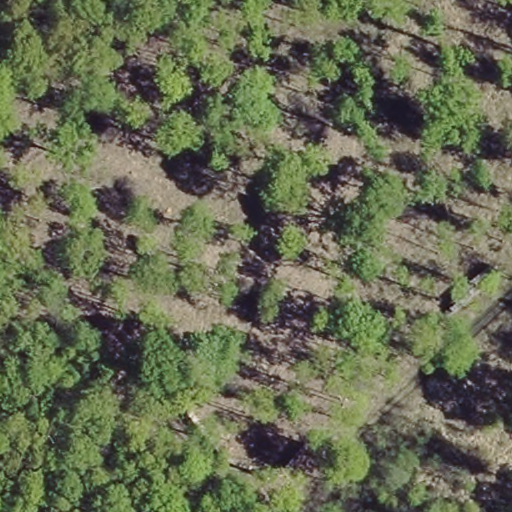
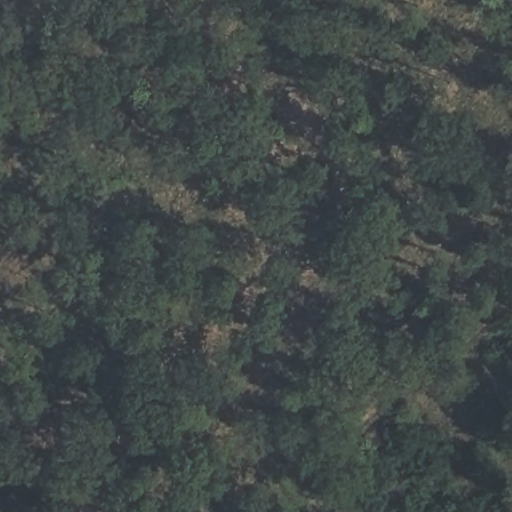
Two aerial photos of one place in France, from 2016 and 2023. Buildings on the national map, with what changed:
[]

